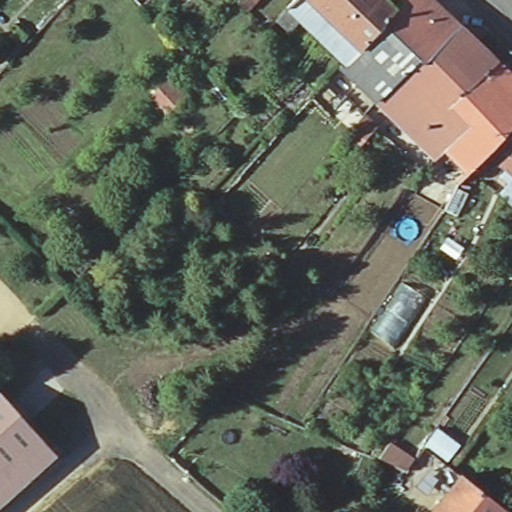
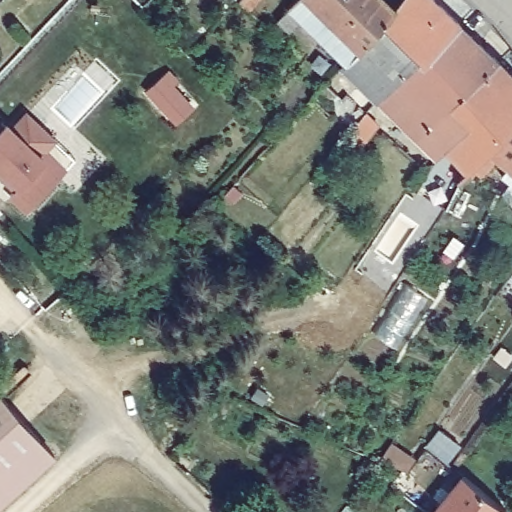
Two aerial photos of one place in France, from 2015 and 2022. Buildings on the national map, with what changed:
unchanged [(390,5),(344,62),(283,4),(287,0),(384,0),(390,5)]
unchanged [(420,60),(416,56),(374,97),(357,80),(342,65),(344,62),(390,5),(394,0),(433,0),(456,22),(420,60)]
unchanged [(374,97),(416,56),(420,60),(456,22),(493,57),(449,101),(469,121),(433,157),(374,97)]
unchanged [(464,173),(459,179),(433,157),(469,121),(449,101),(493,57),(512,76),(512,117),(485,146),(469,167),(472,170),(467,176),(464,173)]
unchanged [(357,80),(326,112),(307,94),(339,62),(342,65),(357,80)]
new [(180,79),(175,84),(196,106),(177,125),(145,91),(169,70),(180,79)]
unchanged [(336,134),(354,111),(356,113),(370,124),(349,146),(337,135),(336,134)]
new [(9,135),(27,116),(55,142),(45,152),(66,172),(28,213),(11,197),(17,191),(0,176),(0,127),(9,135)]
unchanged [(512,117),(512,171),(485,146),(512,117)]
unchanged [(51,455),(0,500),(0,397),(51,455)]
unchanged [(499,505),(493,512),(432,512),(427,508),(457,472),(492,500),(499,505)]
unchanged [(427,508),(432,512),(418,512),(424,505),(427,508)]

